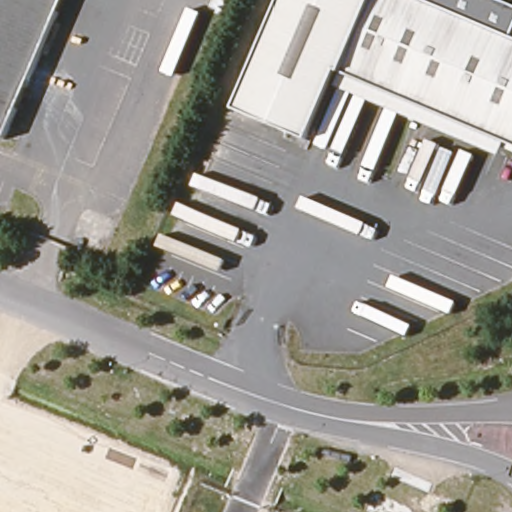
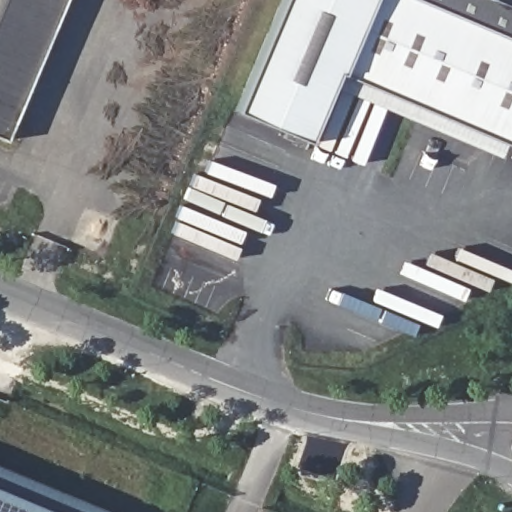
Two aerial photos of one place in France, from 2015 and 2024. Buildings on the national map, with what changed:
unchanged [(0,142),(0,0),(66,0),(7,145),(0,142)]
unchanged [(512,3),(512,146),(340,73),(310,145),(234,112),(281,0),(505,0),(512,3)]
new [(112,512),(0,512),(0,465),(112,512)]

